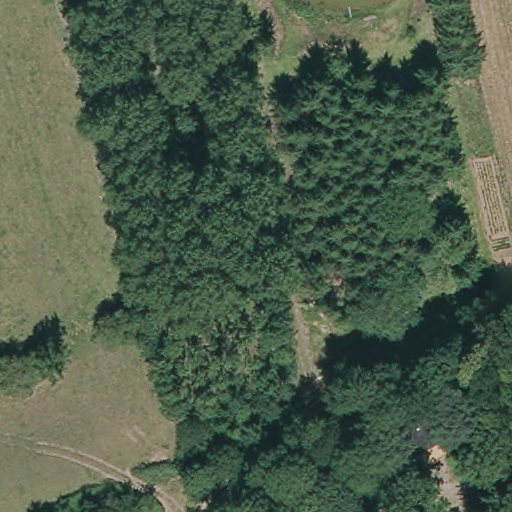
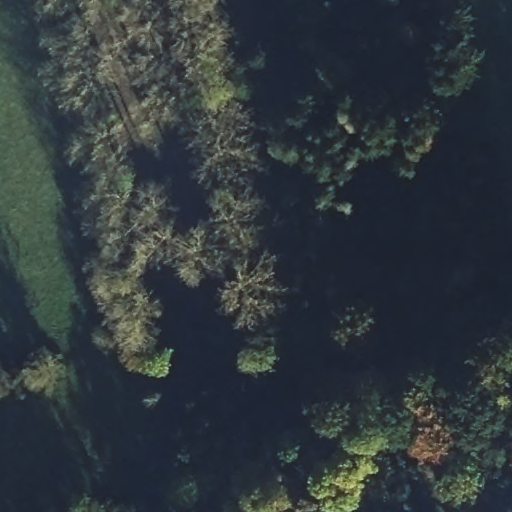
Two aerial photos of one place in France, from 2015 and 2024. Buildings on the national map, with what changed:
unchanged [(455,469),(415,473),(410,433),(446,423),(455,469)]

